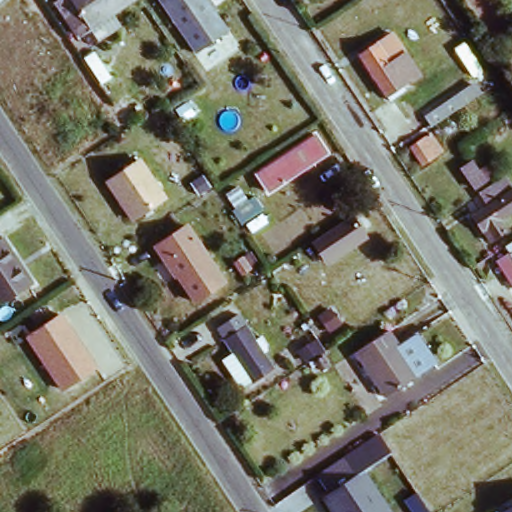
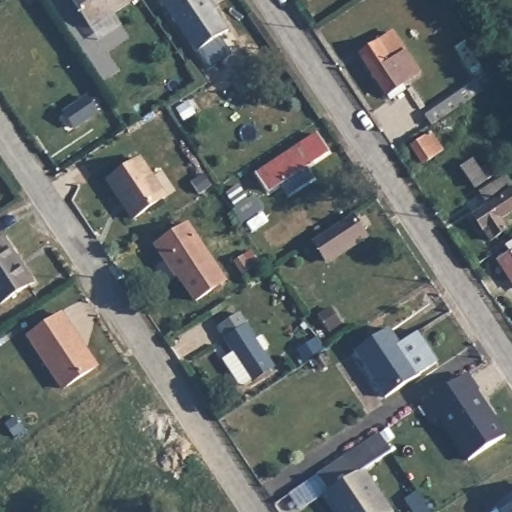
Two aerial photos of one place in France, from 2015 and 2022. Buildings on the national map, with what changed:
unchanged [(133,2),(85,34),(63,0),(132,0),(133,2)]
unchanged [(207,2),(227,32),(195,53),(159,0),(209,0),(207,2)]
unchanged [(395,32),(410,60),(420,54),(431,72),(407,88),(379,39),(395,32)]
unchanged [(407,88),(382,101),(352,54),(379,39),(407,88)]
unchanged [(313,136),(327,156),(268,195),(255,174),(313,136)]
unchanged [(434,137),(445,153),(425,167),(413,150),(434,137)]
unchanged [(458,168),(471,159),(477,168),(490,160),(493,165),(490,167),(493,172),(472,187),(458,168)]
unchanged [(169,203),(132,227),(104,186),(140,160),(169,203)]
unchanged [(512,187),(512,209),(495,220),(502,229),(485,241),(470,217),(484,206),(475,191),(502,173),(512,187)]
unchanged [(365,239),(329,263),(314,240),(350,216),(365,239)]
unchanged [(182,222),(222,277),(193,297),(177,272),(173,274),(160,255),(163,251),(155,241),(182,222)]
unchanged [(31,283),(0,303),(0,239),(1,238),(31,283)]
unchanged [(500,266),(511,258),(505,249),(512,244),(512,283),(500,266)]
unchanged [(325,324),(335,316),(345,331),(335,337),(325,324)]
unchanged [(65,393),(30,341),(63,319),(98,370),(65,393)]
unchanged [(275,368),(255,382),(244,390),(225,360),(236,353),(226,338),(246,325),(275,368)]
unchanged [(388,328),(398,344),(415,331),(435,359),(385,394),(356,350),(388,328)]
new [(440,418),(434,423),(423,406),(466,378),(505,438),(470,462),(440,418)]
unchanged [(365,467),(395,510),(391,512),(337,512),(325,493),(330,489),(318,472),(348,452),(360,470),(365,467)]
unchanged [(497,512),(512,501),(512,512),(497,512)]

